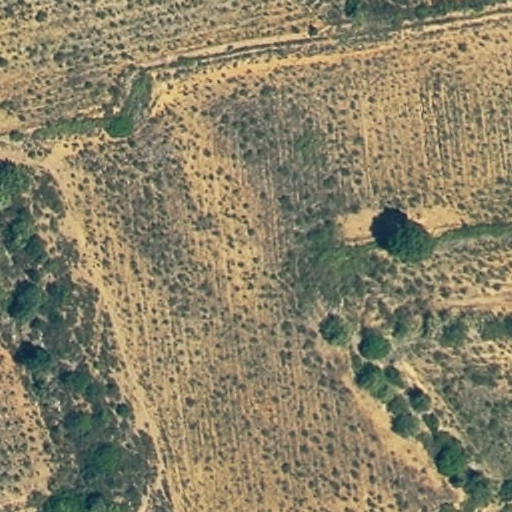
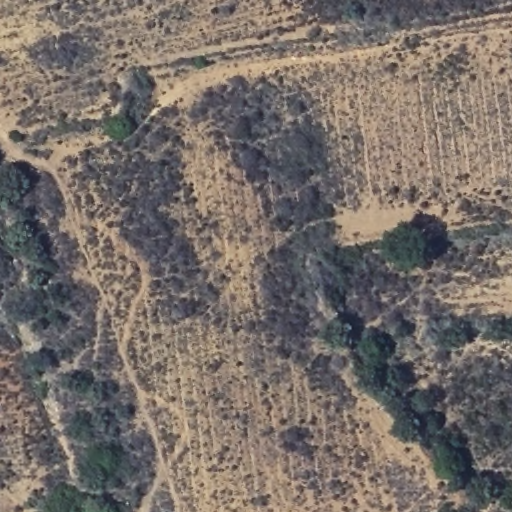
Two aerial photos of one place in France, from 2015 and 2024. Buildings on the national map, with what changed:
[]

